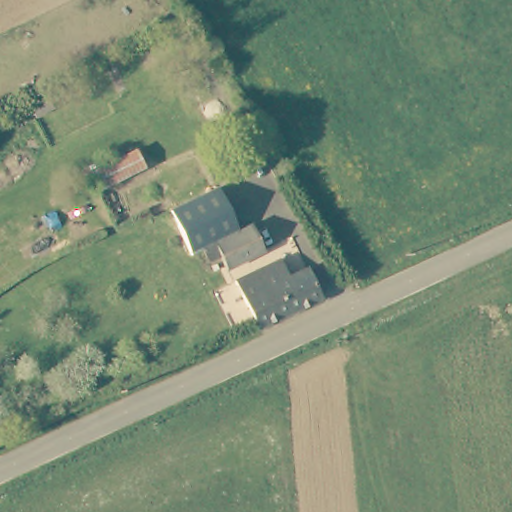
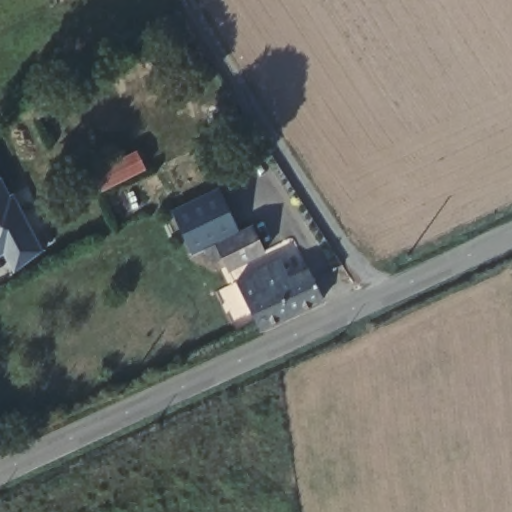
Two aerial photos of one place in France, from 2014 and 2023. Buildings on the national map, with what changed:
new [(12,196),(41,253),(14,273),(4,253),(0,255),(0,179),(9,197),(12,196)]
unchanged [(263,257),(224,278),(217,265),(208,270),(200,257),(189,262),(188,260),(168,218),(214,196),(235,237),(249,231),(263,257)]
unchanged [(317,299),(255,328),(234,285),(279,263),(288,279),(303,271),(317,299)]

